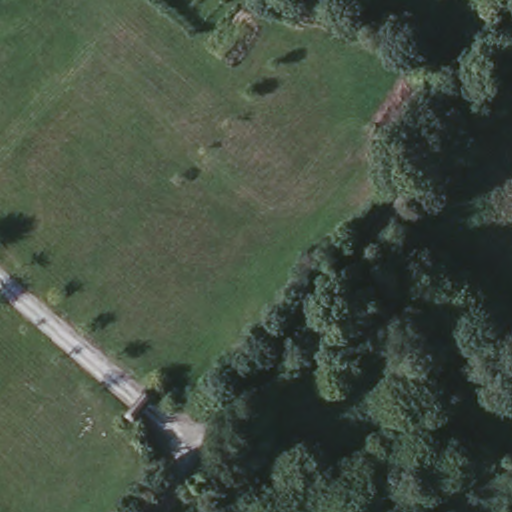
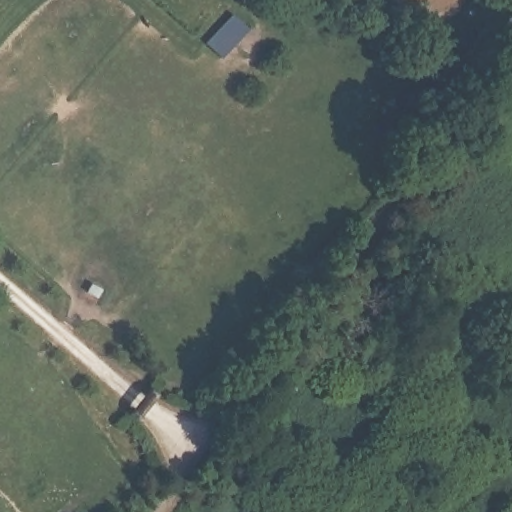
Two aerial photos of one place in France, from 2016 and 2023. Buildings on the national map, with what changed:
new [(235,12),(249,24),(225,54),(210,42),(235,12)]

